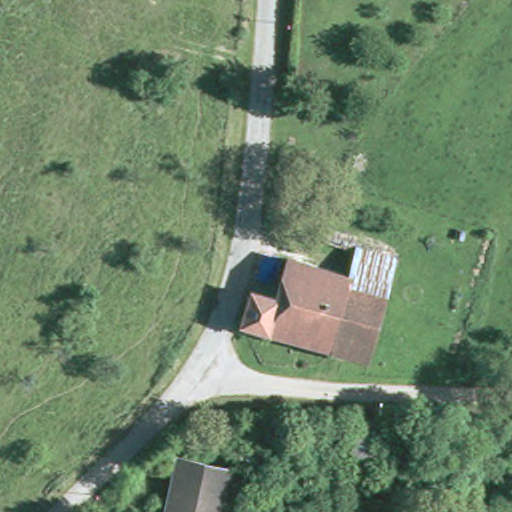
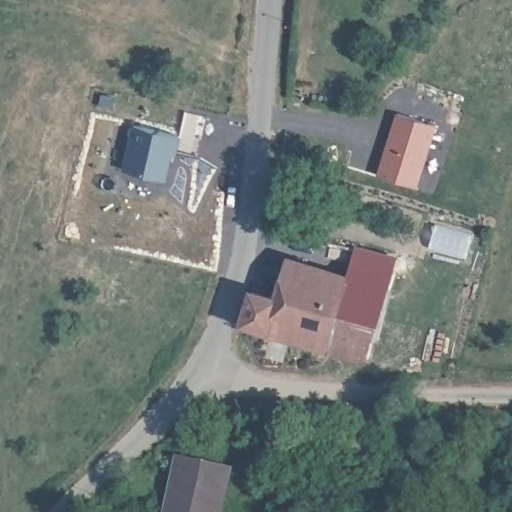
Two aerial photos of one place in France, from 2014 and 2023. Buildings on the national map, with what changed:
new [(398,115),(436,128),(415,189),(377,176),(398,115)]
new [(133,125),(182,136),(178,155),(174,154),(167,180),(122,170),(133,125)]
unchanged [(277,299),(288,259),(348,276),(357,252),(397,264),(369,358),(241,326),(252,292),(277,299)]
unchanged [(359,464),(340,460),(342,417),(361,417),(359,464)]
unchanged [(162,512),(175,460),(223,471),(214,512),(162,512)]

